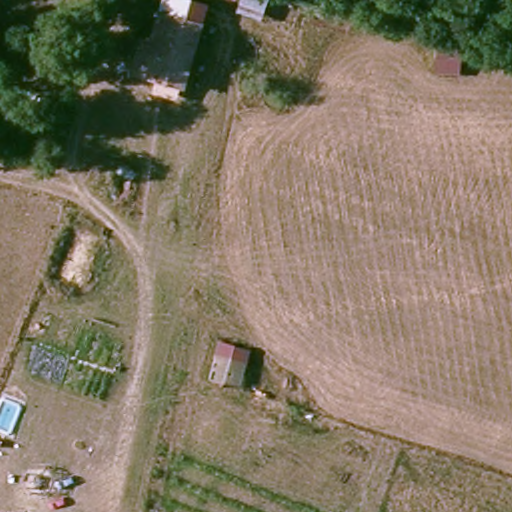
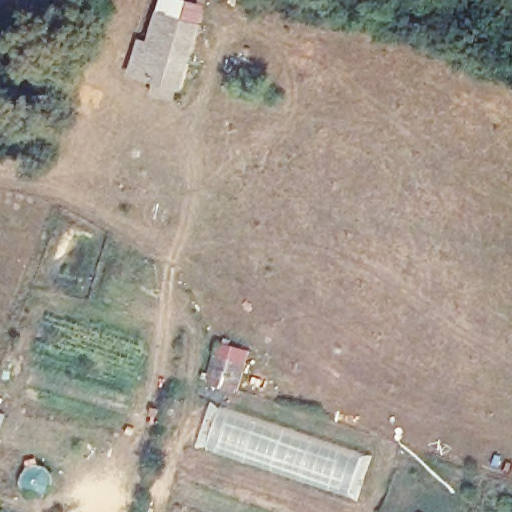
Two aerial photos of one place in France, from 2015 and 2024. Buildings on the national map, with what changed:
unchanged [(141,36),(151,39),(161,0),(190,0),(209,5),(187,91),(131,75),(141,36)]
unchanged [(204,376),(215,338),(251,350),(241,387),(204,376)]
new [(350,498),(208,450),(224,404),(366,452),(350,498)]
new [(420,511),(421,512),(419,512),(420,511)]

